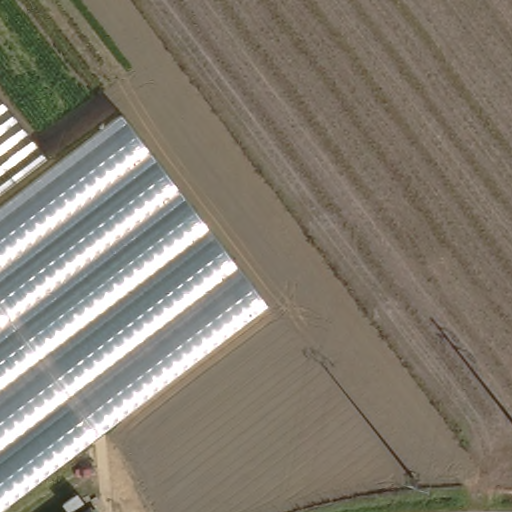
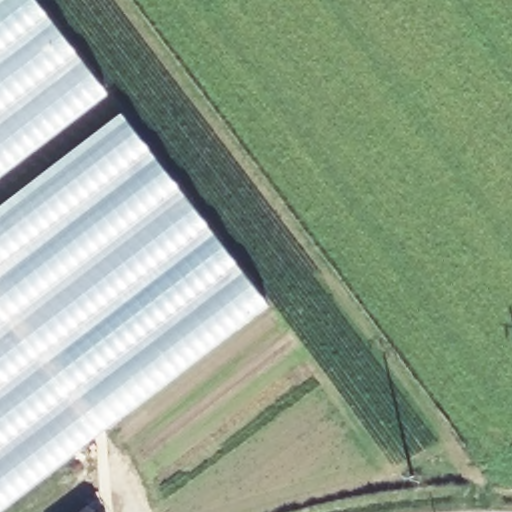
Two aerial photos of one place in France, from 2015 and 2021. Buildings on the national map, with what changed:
new [(0,177),(0,0),(34,0),(106,95),(0,177)]
demolished [(0,192),(0,93),(49,155),(0,192)]
unchanged [(0,508),(0,205),(119,114),(265,304),(0,508)]
unchanged [(93,512),(84,512),(90,508),(93,512)]

